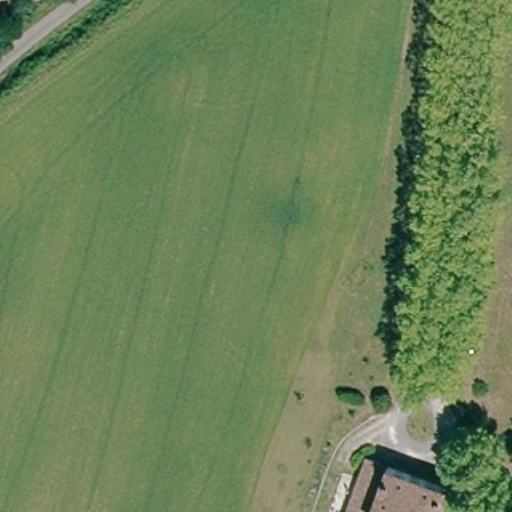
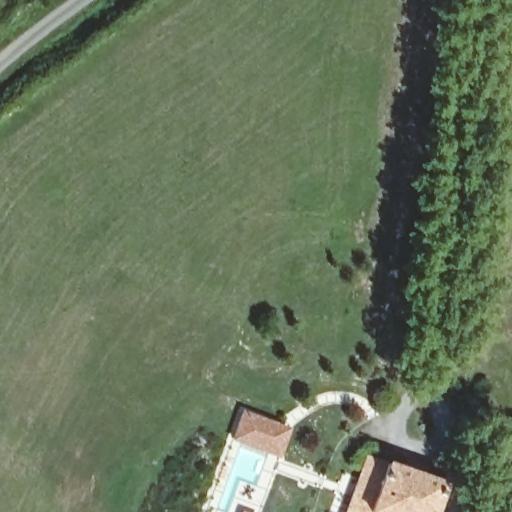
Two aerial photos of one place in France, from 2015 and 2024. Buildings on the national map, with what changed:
new [(291,431),(281,460),(231,442),(242,411),(291,431)]
unchanged [(441,486),(432,512),(346,512),(365,460),(418,478),(441,486)]

